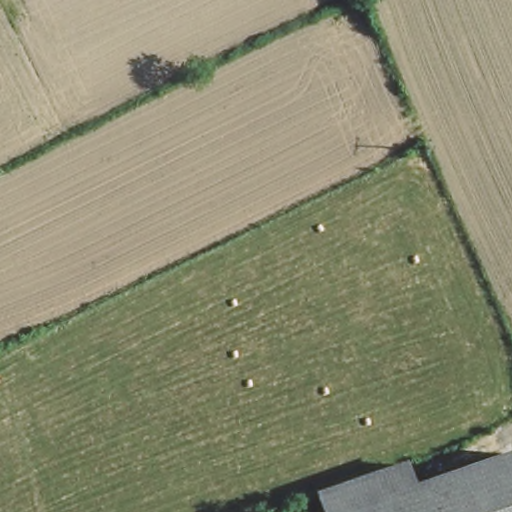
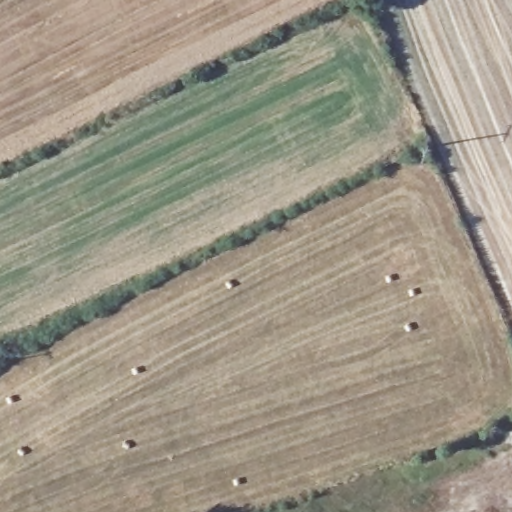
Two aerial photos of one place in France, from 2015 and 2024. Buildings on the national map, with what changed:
demolished [(403,486),(486,456),(505,512),(330,512),(403,486)]
demolished [(301,495),(393,461),(403,486),(330,512),(307,512),(301,495)]

